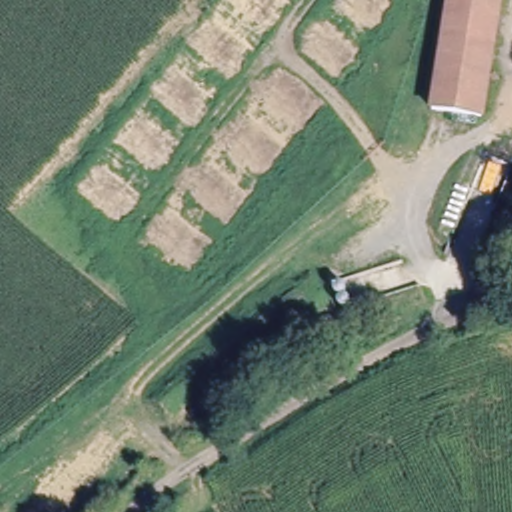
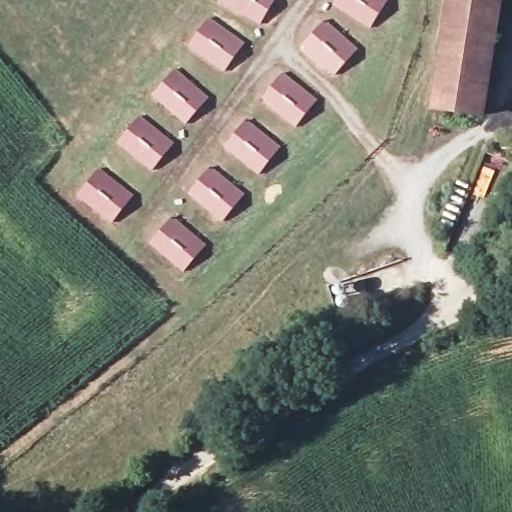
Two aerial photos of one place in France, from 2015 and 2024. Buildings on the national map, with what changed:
new [(278,0),(259,24),(226,0),(278,0)]
new [(334,2),(335,0),(388,0),(371,27),(334,2)]
unchanged [(434,104),(449,0),(497,0),(482,111),(434,104)]
new [(248,43),(228,72),(191,47),(211,18),(248,43)]
new [(358,48),(335,76),(302,47),(324,20),(358,48)]
new [(208,97),(185,125),(151,97),(174,69),(208,97)]
new [(295,128),(262,99),(284,72),(318,101),(306,115),(295,128)]
new [(174,145),(150,171),(117,142),(140,115),(174,145)]
new [(282,146),(259,174),(225,145),(248,118),(282,146)]
new [(189,194),(210,166),(245,194),(223,222),(189,194)]
new [(101,167),(135,195),(113,223),(79,195),(90,181),(101,167)]
new [(208,243),(187,272),(150,246),(171,217),(208,243)]

